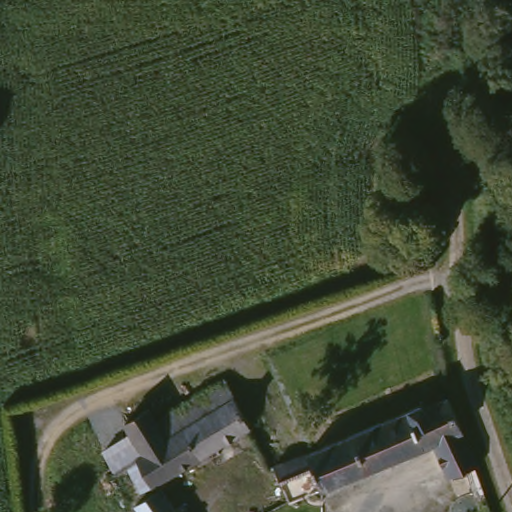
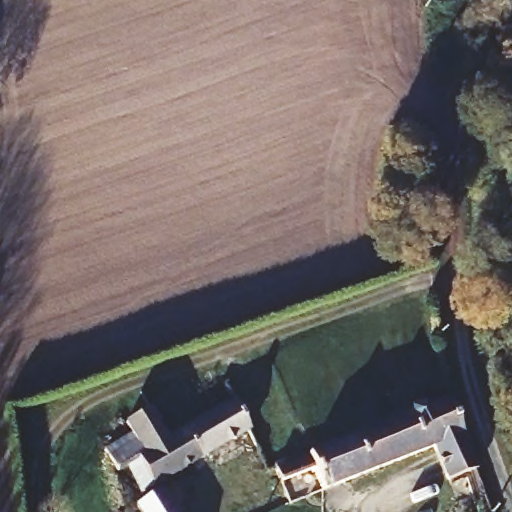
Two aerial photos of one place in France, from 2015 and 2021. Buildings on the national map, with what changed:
unchanged [(121,506),(107,482),(116,477),(104,454),(130,441),(124,429),(148,416),(153,426),(225,386),(252,434),(141,497),(128,471),(121,475),(134,499),(121,506)]
unchanged [(285,485),(278,467),(427,404),(429,409),(451,400),(479,466),(454,477),(440,444),(325,493),(295,505),(285,485)]
unchanged [(165,493),(176,512),(137,512),(136,510),(165,493)]

